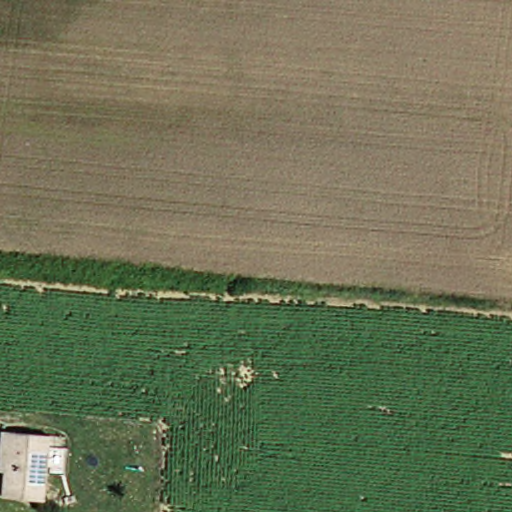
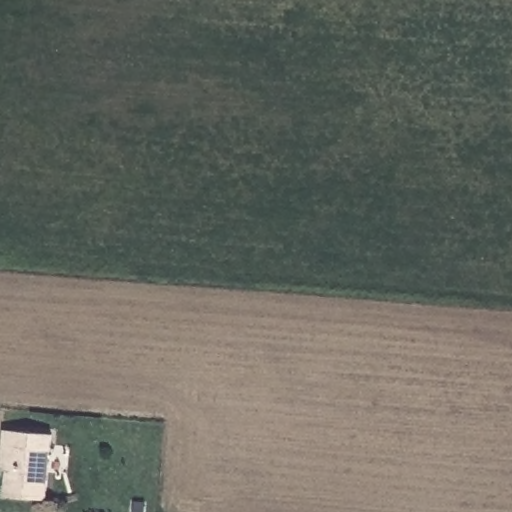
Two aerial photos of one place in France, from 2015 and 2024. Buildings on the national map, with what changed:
unchanged [(61,433),(55,501),(9,497),(11,470),(2,470),(5,445),(6,428),(61,433)]

